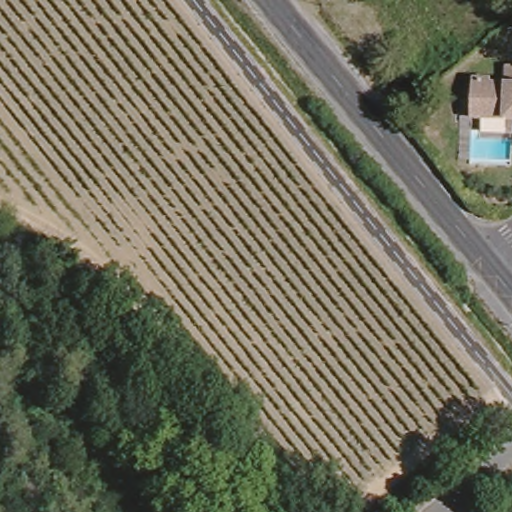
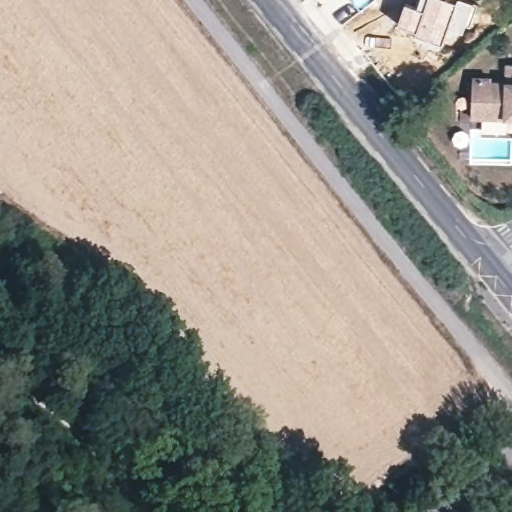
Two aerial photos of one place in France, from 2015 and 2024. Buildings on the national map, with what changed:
new [(476,3),(454,47),(443,44),(396,25),(404,1),(416,6),(418,0),(453,0),(457,0),(469,0),(476,3)]
unchanged [(481,119),(472,118),(474,79),(491,80),(492,84),(506,85),(509,67),(512,68),(512,120),(506,120),(505,132),(480,130),(481,119)]

